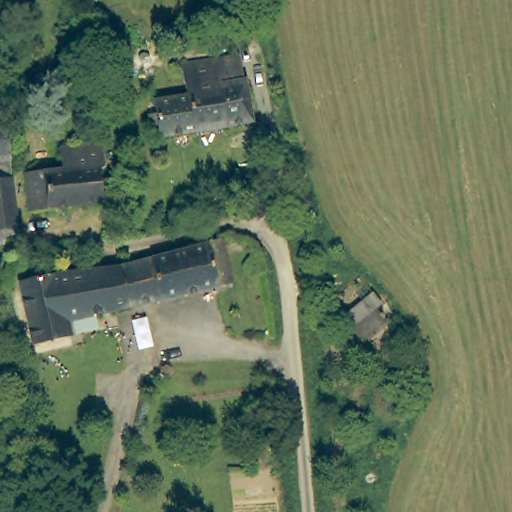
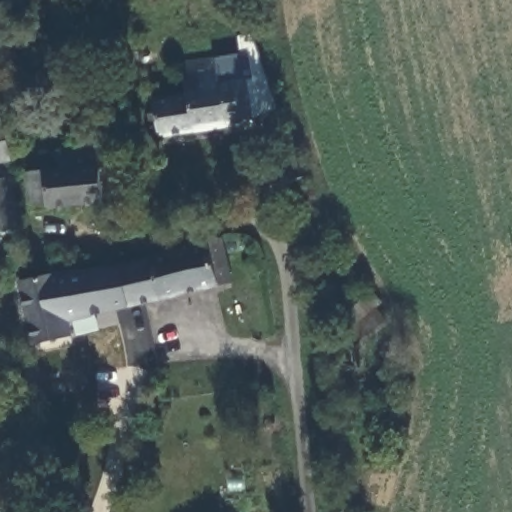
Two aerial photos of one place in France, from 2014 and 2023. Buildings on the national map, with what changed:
unchanged [(157,131),(153,97),(185,94),(180,60),(215,56),(240,52),(244,79),(250,119),(157,131)]
unchanged [(0,246),(0,180),(2,180),(1,178),(0,168),(0,123),(5,122),(20,228),(14,229),(16,244),(0,246)]
unchanged [(106,204),(30,212),(26,176),(65,172),(62,150),(100,146),(106,204)]
unchanged [(222,242),(230,281),(146,302),(136,266),(222,242)]
unchanged [(259,258),(262,262),(263,266),(260,271),(256,273),(251,272),(248,268),(247,263),(250,259),(255,257),(259,258)]
unchanged [(68,323),(71,337),(36,346),(20,283),(56,274),(64,272),(107,268),(119,265),(126,263),(128,269),(136,266),(146,302),(68,323)]
unchanged [(386,320),(365,340),(354,329),(375,309),(386,320)]

